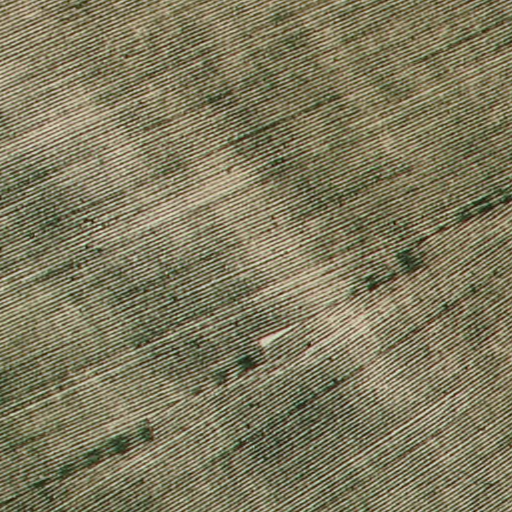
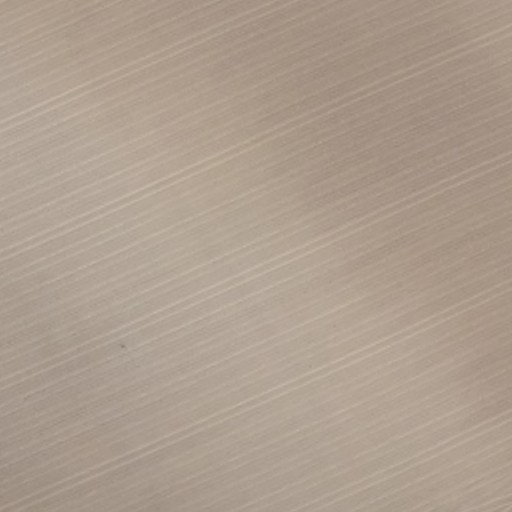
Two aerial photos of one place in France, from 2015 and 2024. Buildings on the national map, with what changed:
[]

